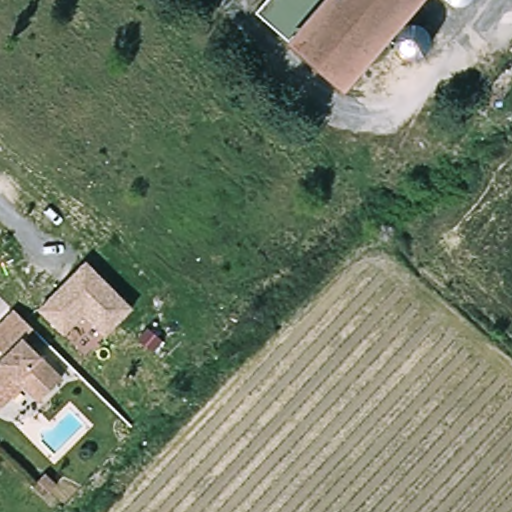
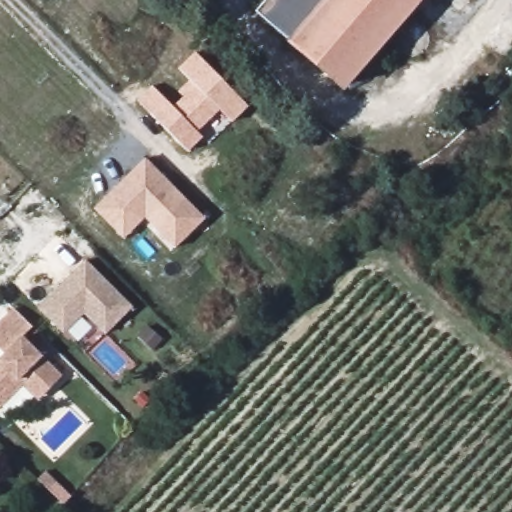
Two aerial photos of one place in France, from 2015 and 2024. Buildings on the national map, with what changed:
unchanged [(255,10),(263,0),(414,0),(336,84),(255,10)]
unchanged [(463,5),(459,5),(453,5),(450,3),(446,0),(445,0),(471,0),(468,2),(463,5)]
unchanged [(417,20),(422,21),(425,24),(429,29),(430,34),(430,39),(429,44),(427,48),(423,51),(418,54),(413,54),(408,53),(404,52),(401,49),(398,45),(396,40),(396,37),(396,33),(398,29),(399,26),(403,23),(405,21),(408,20),(412,19),(417,20)]
new [(153,85),(173,105),(182,97),(176,91),(190,79),(178,67),(195,51),(248,106),(232,122),(220,109),(198,131),(203,136),(188,152),(136,99),(153,85)]
new [(123,239),(93,208),(146,158),(206,219),(175,249),(145,218),(123,239)]
unchanged [(133,306),(106,335),(83,316),(63,333),(38,308),(84,261),(133,306)]
unchanged [(8,392),(0,400),(0,353),(3,351),(0,348),(0,318),(13,305),(21,314),(30,323),(20,333),(59,373),(41,391),(36,397),(20,380),(8,392)]
unchanged [(49,475),(60,487),(53,494),(41,482),(49,475)]

